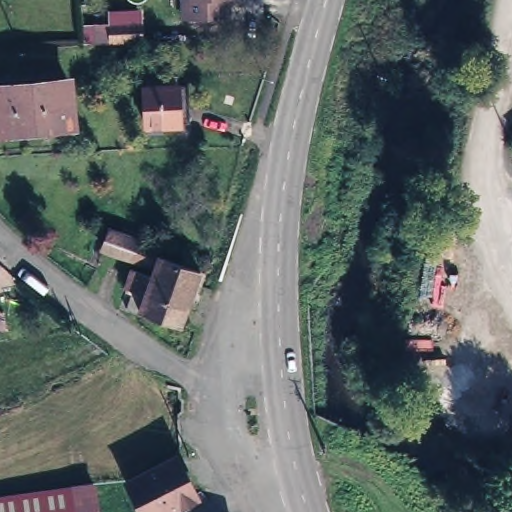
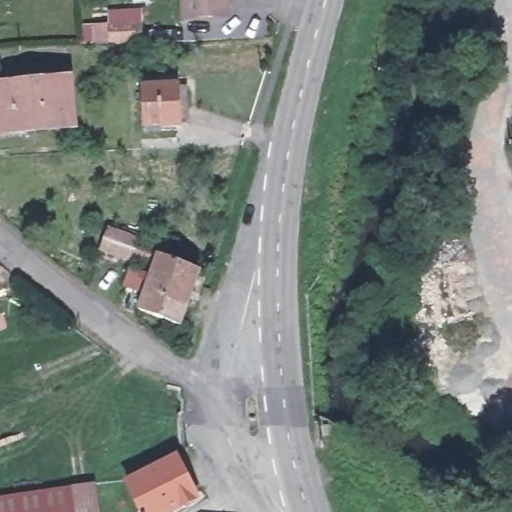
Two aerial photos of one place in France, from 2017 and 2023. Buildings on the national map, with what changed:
unchanged [(182,15),(181,0),(227,0),(227,12),(182,15)]
unchanged [(112,45),(112,29),(137,26),(139,44),(112,45)]
unchanged [(188,125),(176,125),(159,125),(158,131),(144,131),(143,126),(137,127),(134,89),(138,89),(138,79),(172,77),(173,86),(175,87),(175,102),(187,102),(188,125)]
unchanged [(0,83),(60,78),(63,122),(22,125),(22,133),(0,134),(0,83)]
unchanged [(188,309),(182,326),(139,311),(137,315),(127,310),(133,292),(126,290),(133,270),(151,276),(153,268),(105,248),(112,230),(160,250),(158,257),(203,273),(207,275),(195,310),(188,309)]
unchanged [(172,449),(192,491),(148,512),(143,512),(122,474),(172,449)]
unchanged [(0,492),(87,480),(95,512),(0,512),(0,492)]

